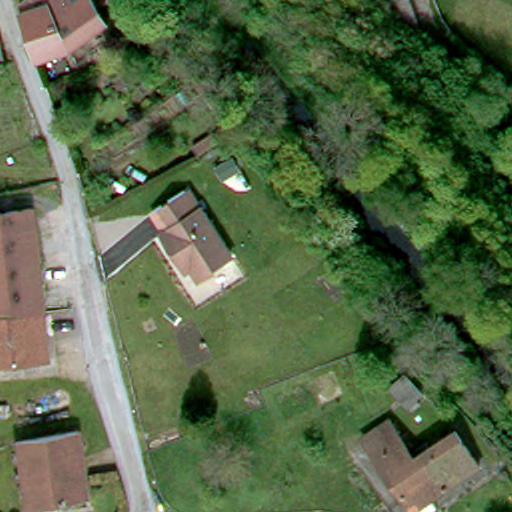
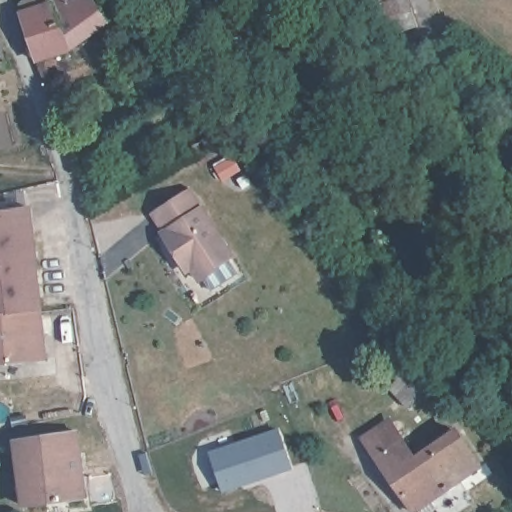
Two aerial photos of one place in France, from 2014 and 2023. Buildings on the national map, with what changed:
unchanged [(40,62),(31,37),(34,35),(28,14),(60,4),(64,0),(98,0),(112,22),(77,50),(40,62)]
unchanged [(393,34),(381,0),(410,0),(419,25),(393,34)]
unchanged [(6,63),(0,64),(0,50),(6,63)]
unchanged [(214,268),(216,271),(201,281),(192,268),(186,271),(162,235),(166,232),(154,214),(159,211),(189,192),(232,257),(214,268)]
unchanged [(36,209),(46,310),(0,315),(0,214),(36,209)]
unchanged [(51,360),(0,367),(0,315),(46,310),(51,360)]
unchanged [(429,443),(433,449),(460,431),(484,468),(436,500),(442,508),(436,512),(423,512),(422,510),(419,512),(369,442),(395,424),(415,452),(429,443)]
new [(278,430),(292,467),(222,491),(210,453),(278,430)]
unchanged [(33,440),(76,434),(84,497),(23,505),(15,442),(33,440)]

